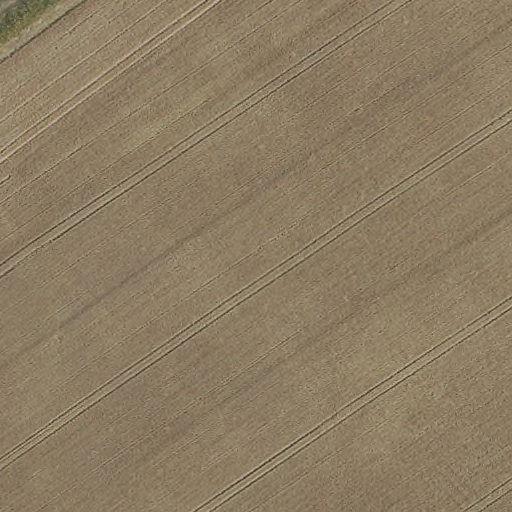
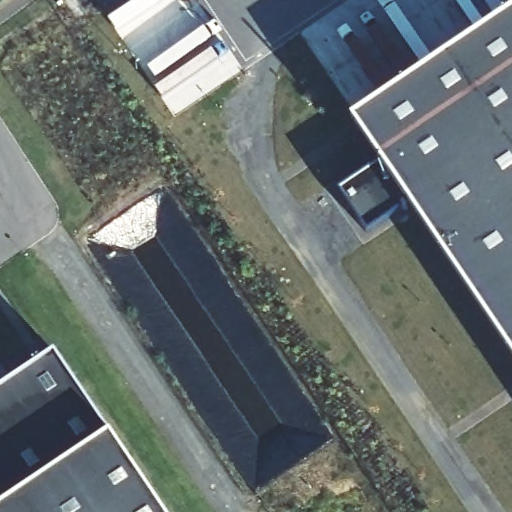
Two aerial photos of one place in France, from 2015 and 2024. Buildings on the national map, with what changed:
new [(380,165),(349,121),(512,11),(512,363),(407,206),(380,165)]
new [(366,235),(337,192),(380,165),(407,206),(366,235)]
new [(0,512),(0,390),(56,352),(164,512),(0,512)]

